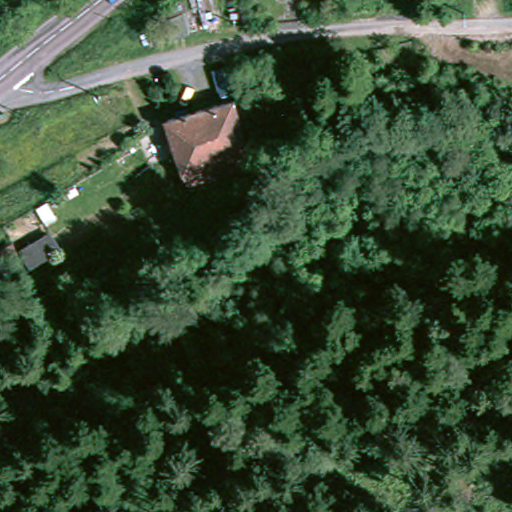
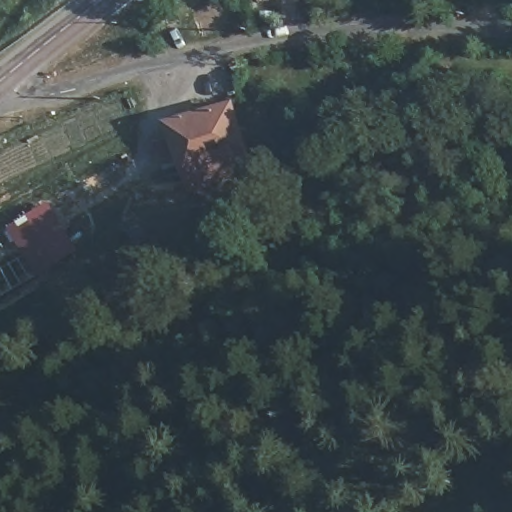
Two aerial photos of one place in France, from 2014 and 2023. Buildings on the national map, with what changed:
unchanged [(187,184),(183,171),(169,117),(240,104),(250,157),(255,166),(187,184)]

